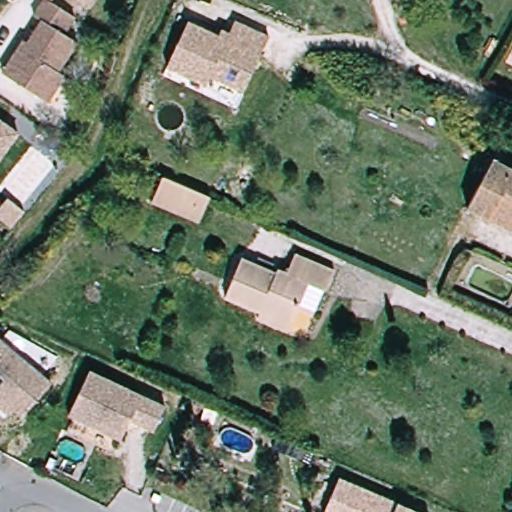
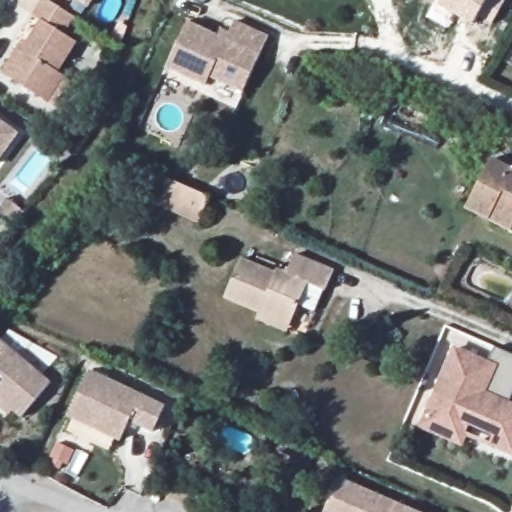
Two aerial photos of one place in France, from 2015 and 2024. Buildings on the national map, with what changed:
unchanged [(66,35),(79,42),(43,98),(13,80),(20,65),(13,59),(23,42),(29,45),(43,22),(33,16),(47,0),(75,18),(66,35)]
unchanged [(266,34),(244,89),(210,75),(205,85),(164,66),(186,20),(224,38),(232,19),(266,34)]
unchanged [(0,155),(0,121),(16,134),(0,155)]
unchanged [(512,167),(512,228),(468,208),(489,162),(509,169),(512,167)]
unchanged [(209,200),(198,224),(149,204),(159,179),(209,200)]
unchanged [(258,321),(261,312),(225,295),(241,259),(278,276),(281,270),(296,276),(303,260),(336,275),(319,316),(302,312),(299,322),(295,335),(258,321)]
unchanged [(21,413),(19,415),(13,410),(10,407),(0,404),(0,341),(48,380),(21,413)]
new [(489,361),(493,348),(512,357),(512,392),(508,401),(512,403),(512,456),(488,446),(492,436),(469,426),(461,447),(417,429),(453,346),(489,361)]
unchanged [(151,430),(128,418),(118,438),(66,413),(88,368),(163,405),(151,430)]
unchanged [(6,412),(0,407),(0,405),(10,408),(6,412)]
unchanged [(399,512),(331,512),(343,482),(402,505),(399,512)]
new [(417,512),(399,512),(402,505),(417,512)]

